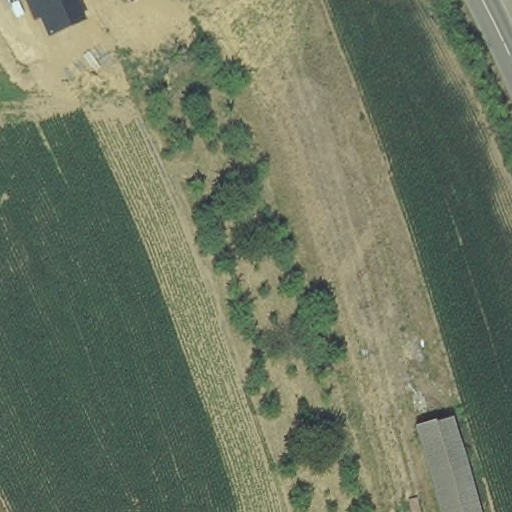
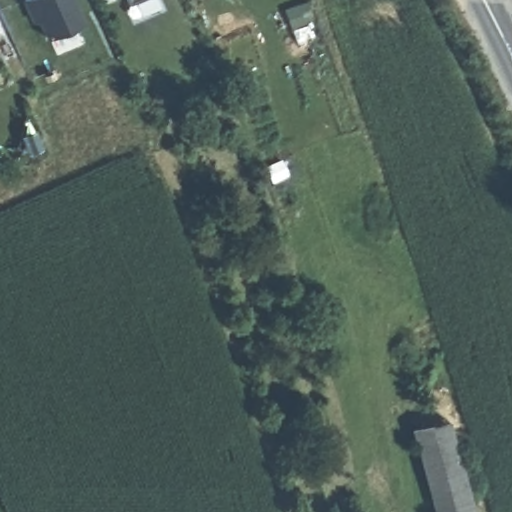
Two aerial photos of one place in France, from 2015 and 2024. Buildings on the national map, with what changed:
unchanged [(46,39),(37,20),(33,22),(24,0),(72,0),(83,21),(46,39)]
unchanged [(475,512),(437,512),(413,432),(448,421),(475,512)]

